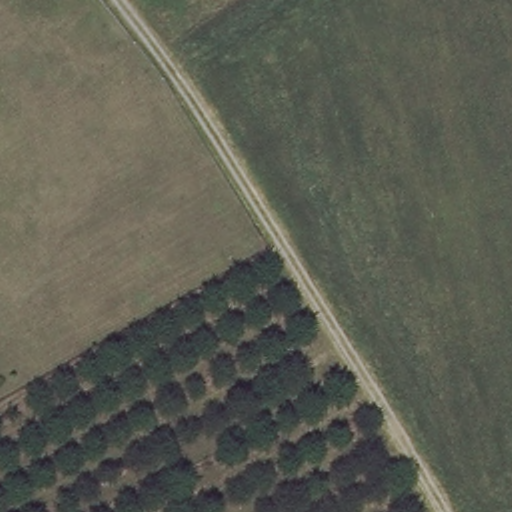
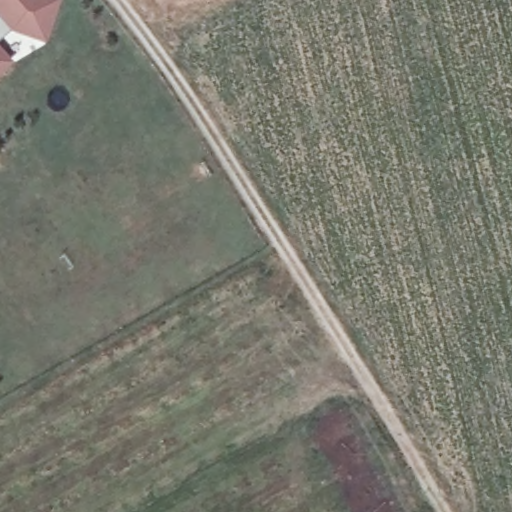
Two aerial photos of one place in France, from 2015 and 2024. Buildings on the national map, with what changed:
new [(20,34),(19,36),(10,30),(0,39),(0,0),(59,0),(45,43),(20,34)]
new [(13,64),(0,75),(0,48),(13,64)]

